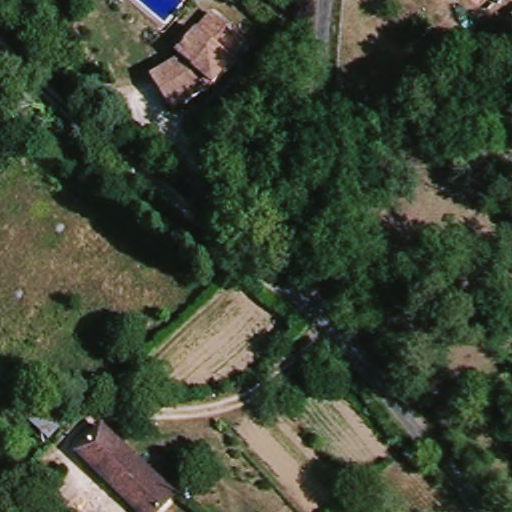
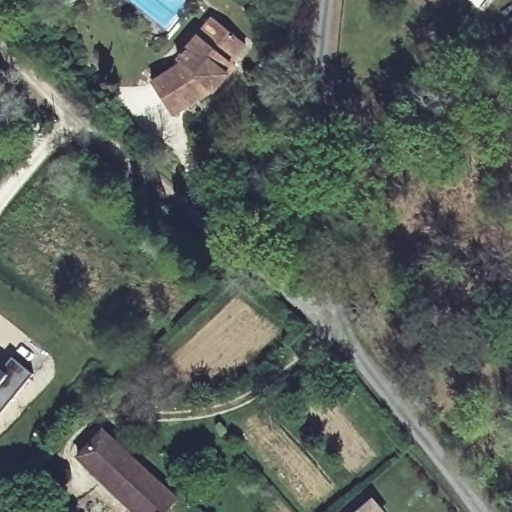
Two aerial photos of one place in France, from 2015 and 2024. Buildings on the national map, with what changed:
unchanged [(508,20),(512,17),(512,26),(508,20)]
unchanged [(185,65),(182,62),(214,24),(246,49),(231,67),(237,70),(221,90),(175,120),(154,85),(185,65)]
new [(11,358),(33,375),(0,416),(0,369),(1,370),(11,358)]
unchanged [(50,400),(74,422),(54,442),(30,422),(50,400)]
unchanged [(105,435),(175,497),(161,512),(137,512),(81,460),(105,435)]
new [(377,500),(388,512),(363,512),(377,500)]
unchanged [(75,512),(70,512),(72,510),(75,512)]

